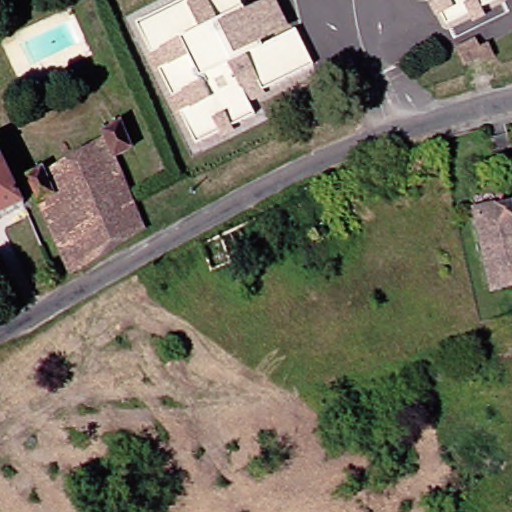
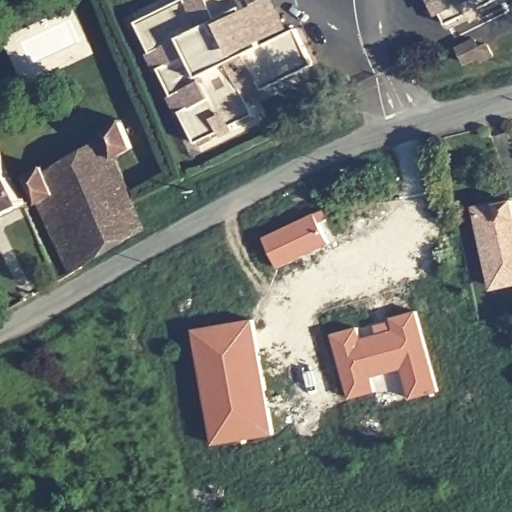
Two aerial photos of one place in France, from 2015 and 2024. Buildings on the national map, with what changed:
unchanged [(240,0),(246,10),(269,0),(276,0),(291,32),(296,28),(313,63),(262,90),(266,96),(250,103),(255,114),(232,125),(236,132),(224,138),(220,131),(197,143),(181,111),(176,113),(168,97),(172,95),(160,69),(154,71),(147,56),(151,53),(137,23),(183,0),(240,0)]
new [(436,0),(498,0),(448,24),(436,0)]
unchanged [(477,38),(481,47),(488,43),(494,55),(483,61),(481,56),(467,63),(459,47),(477,38)]
unchanged [(118,161),(134,201),(74,237),(87,267),(72,275),(28,178),(44,168),(48,175),(107,140),(104,133),(124,122),(136,150),(118,161)]
unchanged [(0,213),(0,148),(25,201),(0,213)]
unchanged [(134,201),(144,223),(147,230),(87,267),(74,237),(134,201)]
unchanged [(497,286),(480,208),(509,201),(512,201),(512,283),(497,286)]
new [(280,268),(265,238),(315,214),(330,244),(280,268)]
new [(410,402),(400,370),(368,379),(371,394),(349,399),(333,334),(356,328),(359,339),(398,328),(394,317),(414,311),(437,394),(410,402)]
new [(215,444),(195,330),(254,320),(274,434),(215,444)]

